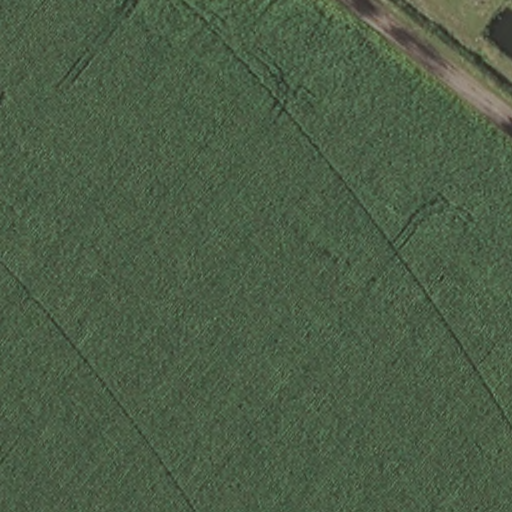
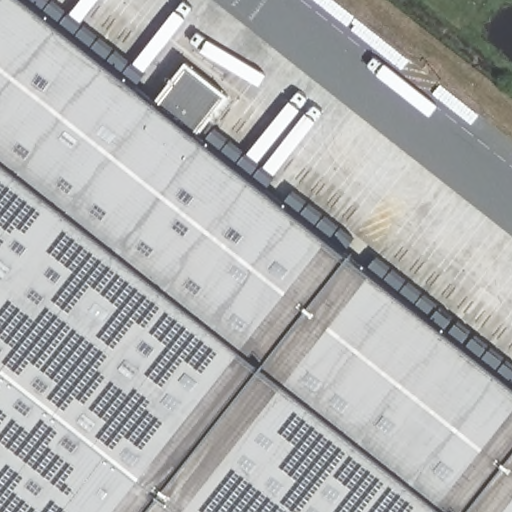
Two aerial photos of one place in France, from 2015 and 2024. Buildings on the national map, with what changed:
new [(0,0),(25,0),(156,104),(186,63),(227,97),(199,137),(512,386),(512,512),(0,512),(0,0)]

